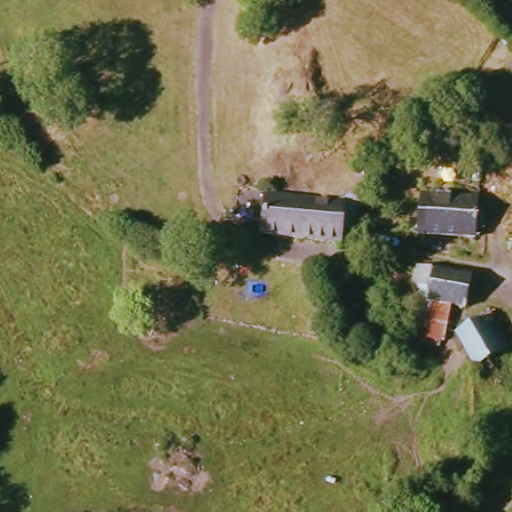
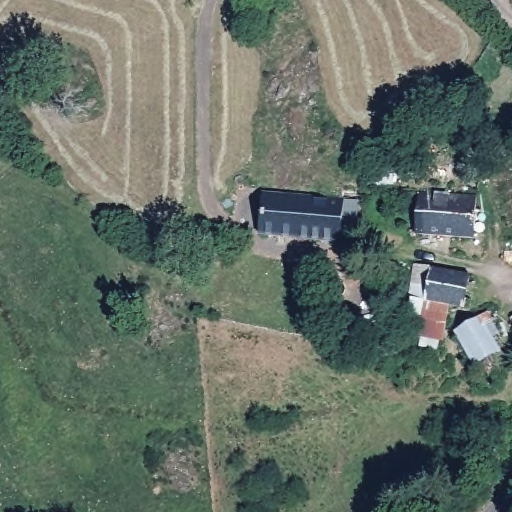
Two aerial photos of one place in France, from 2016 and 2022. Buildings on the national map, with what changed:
unchanged [(267,191),(343,201),(343,231),(342,244),(266,234),(267,191)]
unchanged [(425,235),(426,195),(482,203),(483,241),(425,235)]
unchanged [(475,310),(453,306),(417,301),(421,264),(456,274),(478,280),(475,310)]
unchanged [(449,338),(413,332),(417,301),(453,306),(449,338)]
unchanged [(485,319),(505,352),(481,369),(472,355),(460,336),(469,329),(485,319)]

